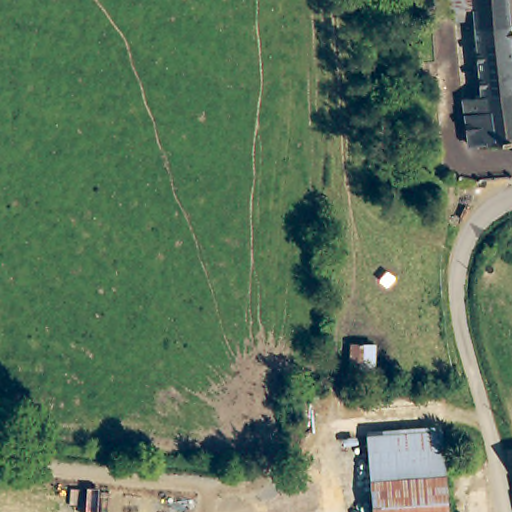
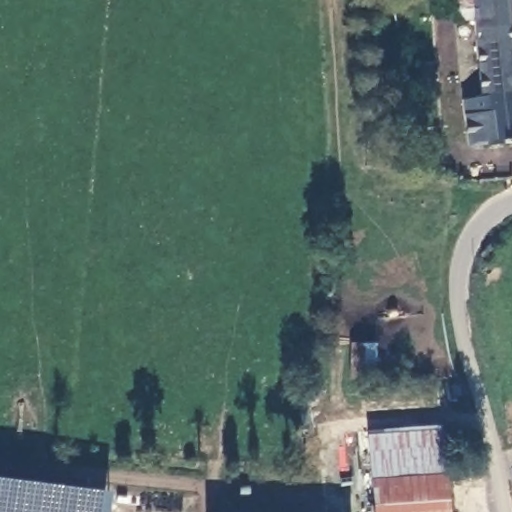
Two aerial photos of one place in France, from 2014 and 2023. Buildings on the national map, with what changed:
unchanged [(448,9),(447,0),(507,0),(512,64),(512,140),(482,143),(483,153),(468,154),(467,144),(456,144),(453,98),(477,96),(470,13),(456,14),(456,18),(433,20),(432,8),(448,9)]
unchanged [(486,252),(495,242),(502,249),(493,259),(484,254),(486,252)]
unchanged [(449,512),(372,512),(373,466),(375,431),(451,432),(451,461),(449,512)]
new [(106,487),(104,512),(0,512),(0,475),(106,487)]

